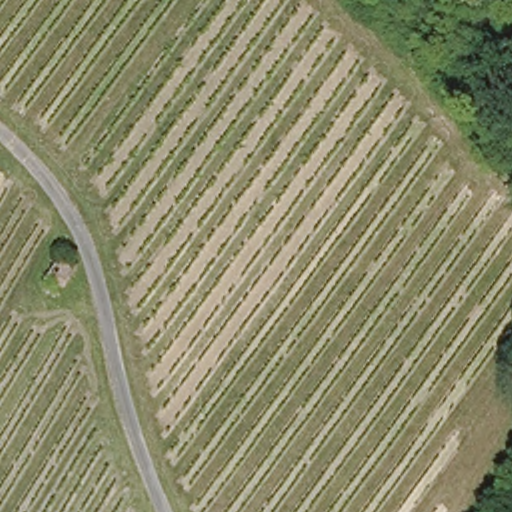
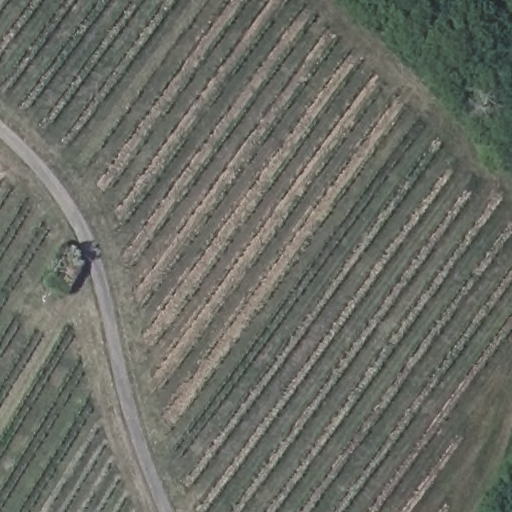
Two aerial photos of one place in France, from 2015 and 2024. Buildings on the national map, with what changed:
unchanged [(74,273),(59,297),(45,288),(59,263),(74,273)]

